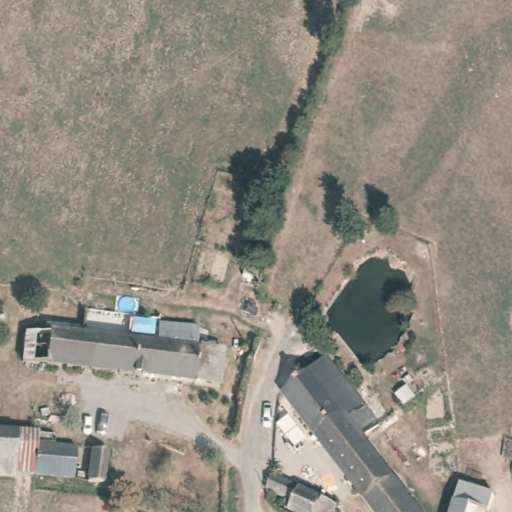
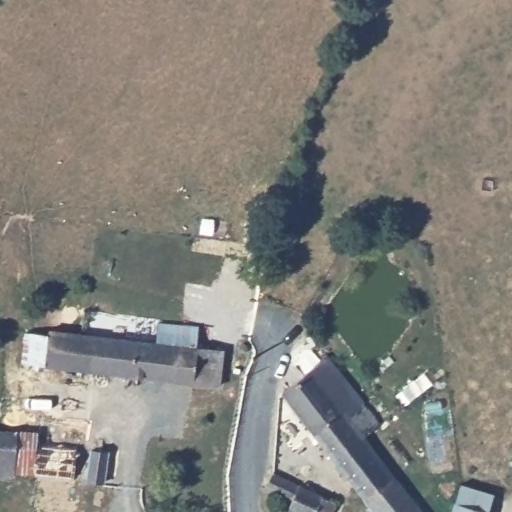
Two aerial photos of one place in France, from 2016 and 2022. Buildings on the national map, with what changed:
unchanged [(49,327),(157,341),(159,320),(197,326),(196,336),(195,346),(224,349),(220,383),(24,360),(29,330),(46,333),(49,327)]
unchanged [(382,422),(365,436),(393,474),(362,497),(281,392),(328,352),(382,422)]
unchanged [(14,474),(0,473),(0,428),(39,431),(35,471),(14,470),(14,474)]
unchanged [(39,431),(55,432),(55,444),(76,446),(74,474),(35,471),(39,431)]
unchanged [(104,480),(104,481),(88,478),(91,446),(108,448),(104,480)]
unchanged [(337,501),(333,512),(308,512),(290,504),(292,498),(266,487),(270,478),(273,471),(337,501)]
unchanged [(393,474),(424,512),(374,512),(362,497),(393,474)]
unchanged [(452,500),(455,479),(490,485),(486,504),(484,505),(483,512),(451,512),(452,500)]

